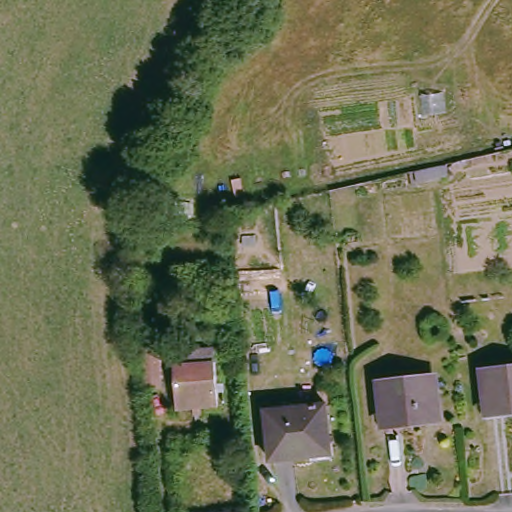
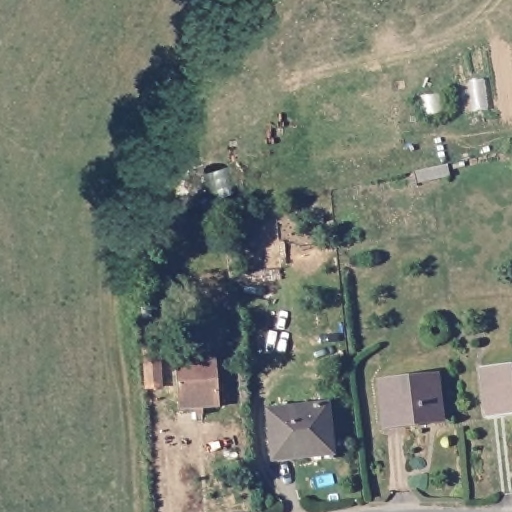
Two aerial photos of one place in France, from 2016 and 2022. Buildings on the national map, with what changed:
unchanged [(410,175),(428,171),(441,169),(443,177),(430,180),(411,184),(410,175)]
unchanged [(135,226),(155,225),(156,322),(138,323),(135,226)]
unchanged [(160,394),(143,395),(141,351),(156,350),(157,360),(160,394)]
unchanged [(210,355),(215,414),(177,418),(172,358),(210,355)]
unchanged [(512,371),(512,415),(488,417),(485,374),(512,371)]
unchanged [(441,378),(445,422),(389,427),(385,383),(441,378)]
unchanged [(329,404),(337,449),(314,453),(310,459),(276,464),(267,414),(329,404)]

